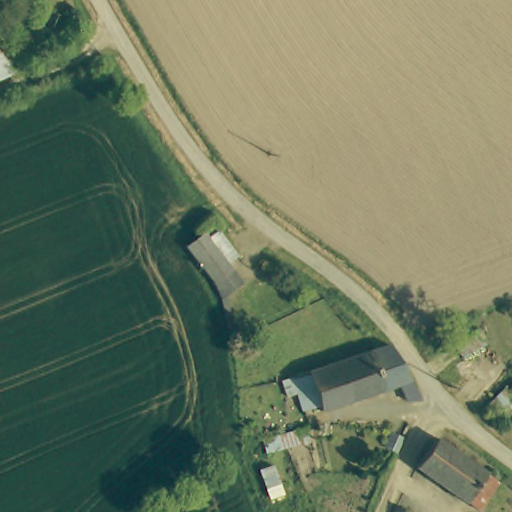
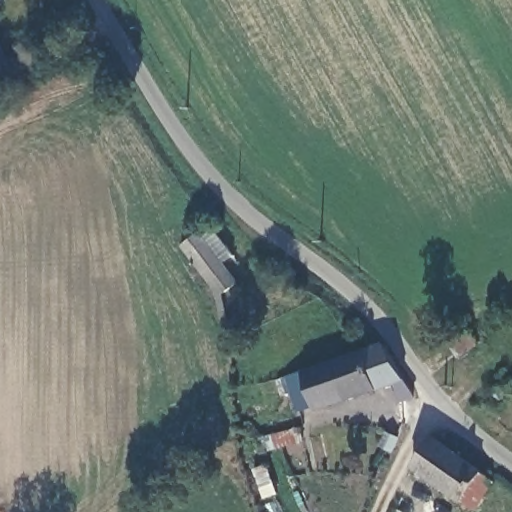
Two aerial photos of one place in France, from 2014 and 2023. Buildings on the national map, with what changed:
unchanged [(17,72),(0,80),(0,30),(17,72)]
unchanged [(190,251),(209,240),(232,280),(214,290),(213,287),(190,251)]
unchanged [(396,408),(386,390),(302,421),(288,382),(383,345),(387,349),(414,401),(396,408)]
unchanged [(372,448),(379,430),(398,436),(391,457),(372,448)]
unchanged [(489,478),(468,506),(461,502),(454,498),(451,501),(405,468),(425,433),(489,478)]
unchanged [(389,512),(390,510),(394,512),(389,512)]

